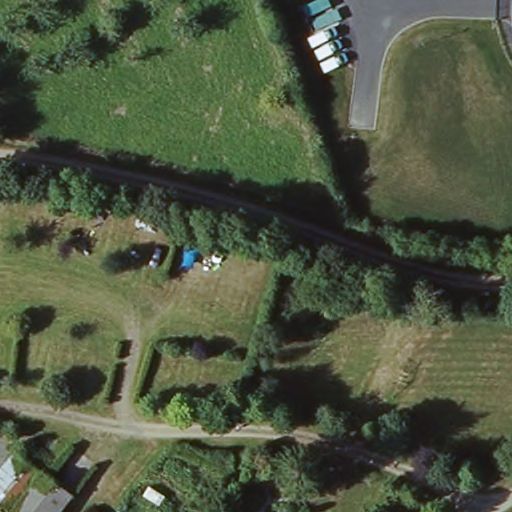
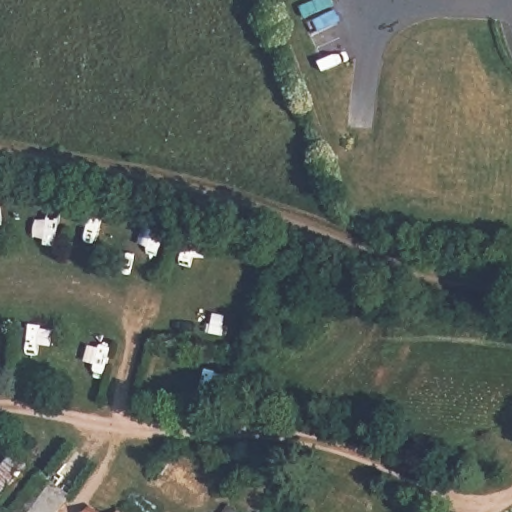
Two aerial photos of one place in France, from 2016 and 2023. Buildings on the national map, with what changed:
unchanged [(16,451),(44,473),(14,512),(7,512),(3,509),(0,507),(0,472),(16,451)]
unchanged [(72,495),(60,512),(14,512),(44,473),(72,495)]
unchanged [(1,512),(3,509),(7,512),(1,512)]
unchanged [(88,512),(88,511),(89,512),(88,512)]

